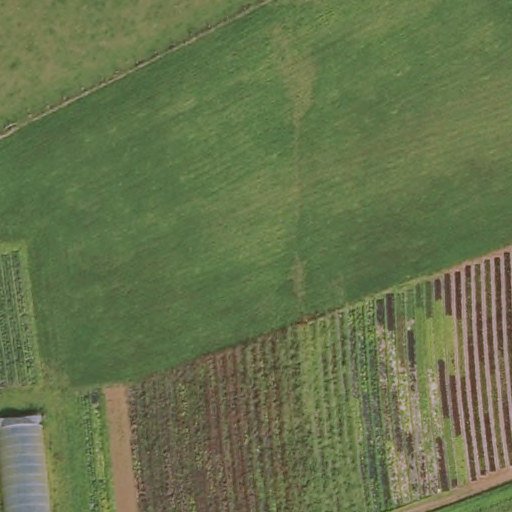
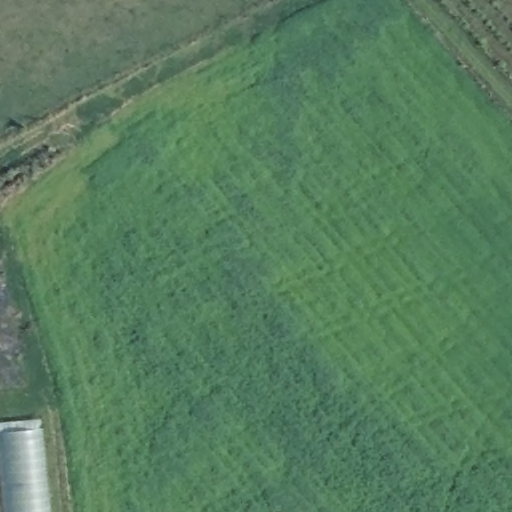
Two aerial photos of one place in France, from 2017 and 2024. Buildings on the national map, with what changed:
unchanged [(51,512),(5,512),(0,456),(0,423),(42,420),(51,512)]

